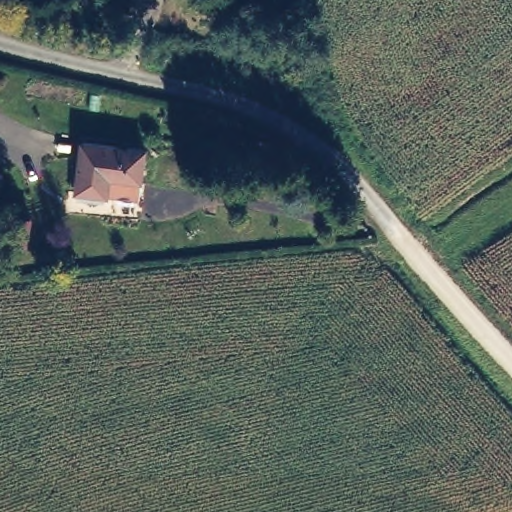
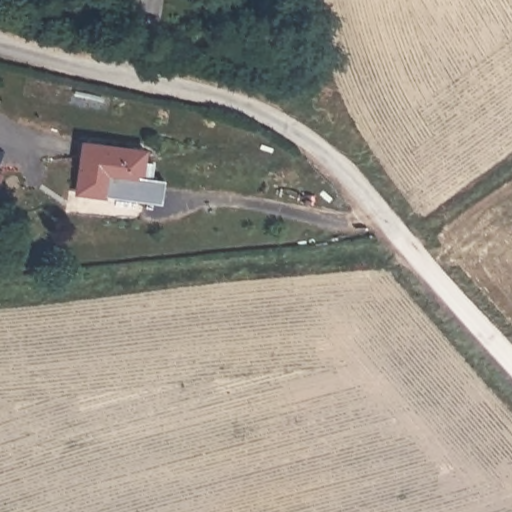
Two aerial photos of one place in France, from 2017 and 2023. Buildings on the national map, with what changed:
unchanged [(143,150),(138,181),(107,176),(106,195),(76,193),(83,142),(143,150)]

